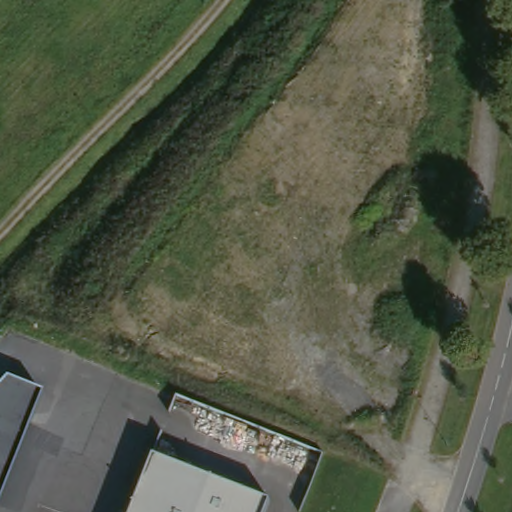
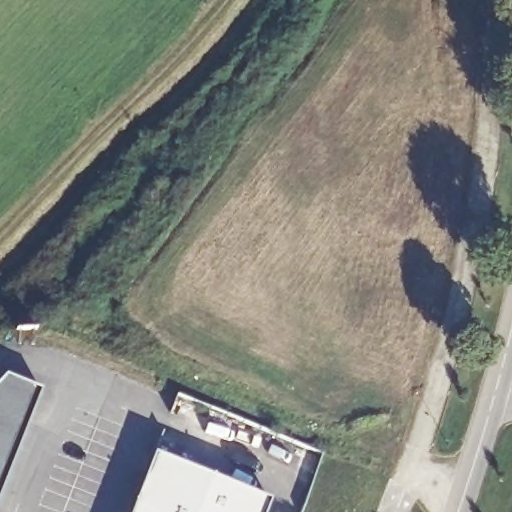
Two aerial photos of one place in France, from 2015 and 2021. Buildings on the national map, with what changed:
unchanged [(43,389),(0,498),(0,381),(6,375),(43,389)]
unchanged [(269,504),(266,512),(135,512),(154,462),(269,504)]

